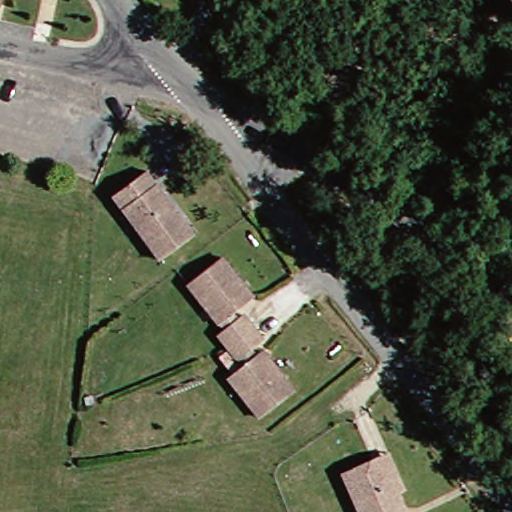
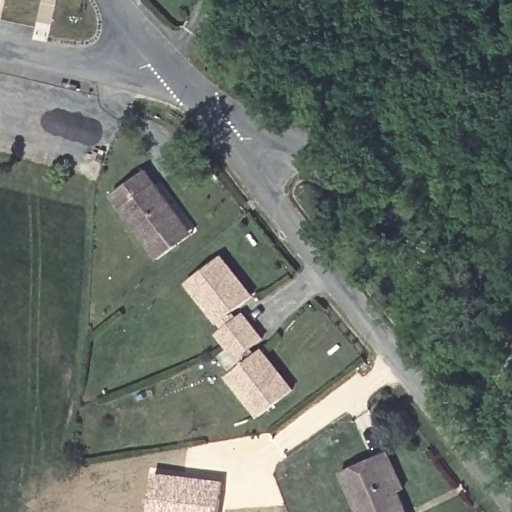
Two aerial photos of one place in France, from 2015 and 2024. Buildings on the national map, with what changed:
unchanged [(0,7),(0,0),(7,0),(5,8),(0,7)]
unchanged [(200,234),(166,259),(120,197),(153,173),(200,234)]
unchanged [(227,337),(233,332),(194,286),(228,260),(262,299),(240,314),(246,323),(253,319),(262,331),(238,351),(227,337)]
unchanged [(423,280),(412,297),(394,284),(404,269),(423,280)]
unchanged [(262,331),(273,346),(261,354),(266,361),(274,356),(306,394),(269,422),(236,381),(252,369),(238,351),(262,331)]
unchanged [(344,480),(390,454),(411,490),(403,493),(414,512),(361,512),(344,480)]
new [(221,512),(149,512),(154,473),(226,481),(221,512)]

